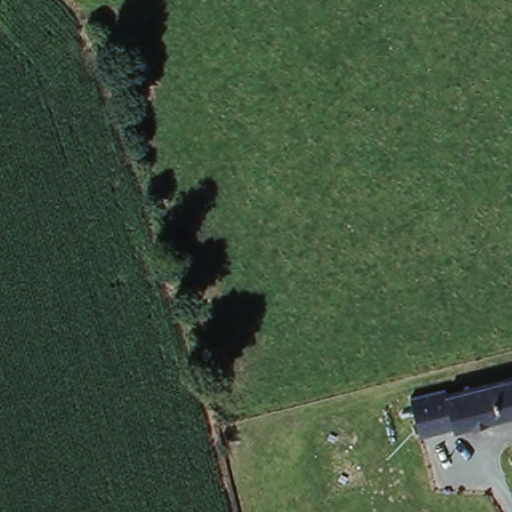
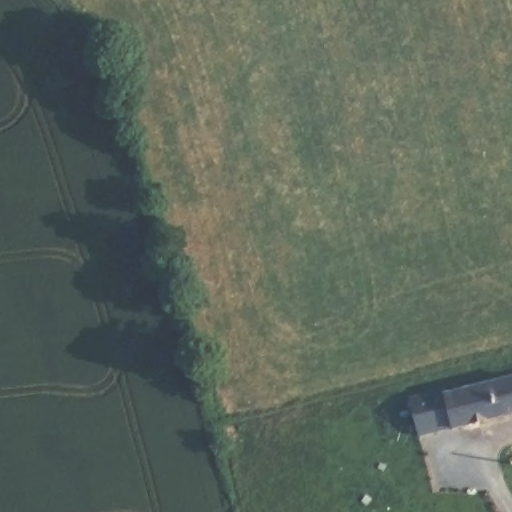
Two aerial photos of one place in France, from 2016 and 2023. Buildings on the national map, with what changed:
unchanged [(422,403),(446,397),(492,387),(512,382),(512,417),(501,420),(454,431),(431,437),(422,403)]

